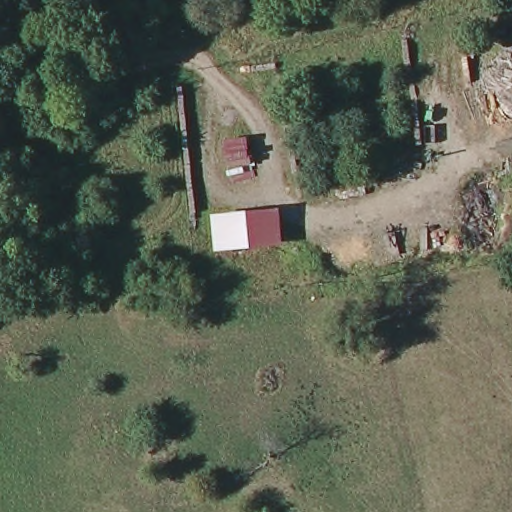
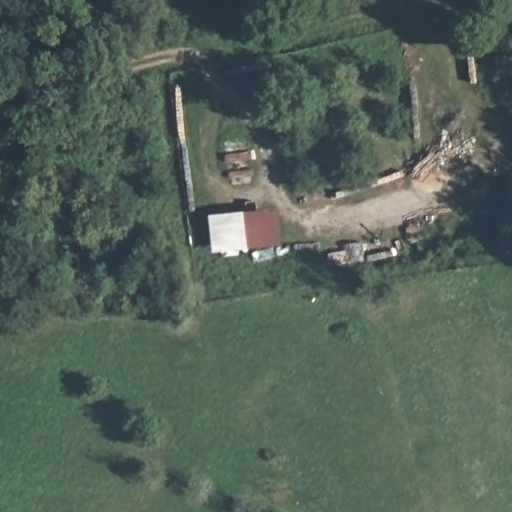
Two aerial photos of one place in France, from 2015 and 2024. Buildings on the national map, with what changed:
unchanged [(287,246),(212,256),(207,213),(285,210),(287,246)]

